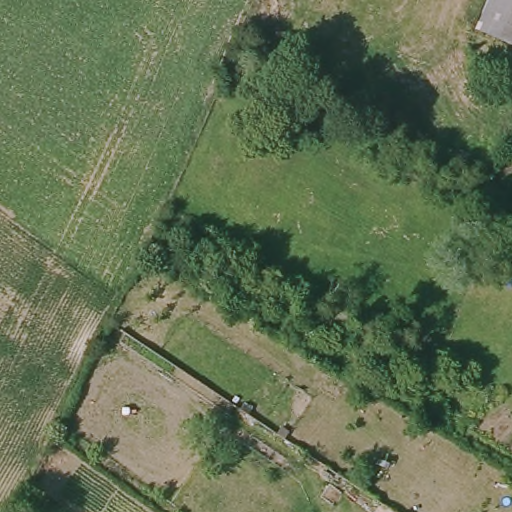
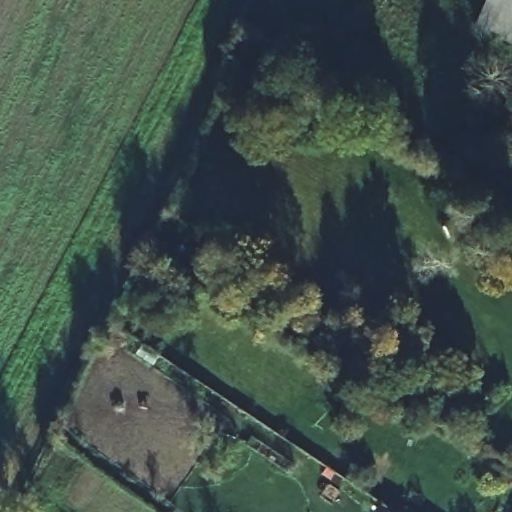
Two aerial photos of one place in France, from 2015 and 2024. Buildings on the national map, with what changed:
unchanged [(475,0),(512,0),(512,42),(466,14),(475,0)]

